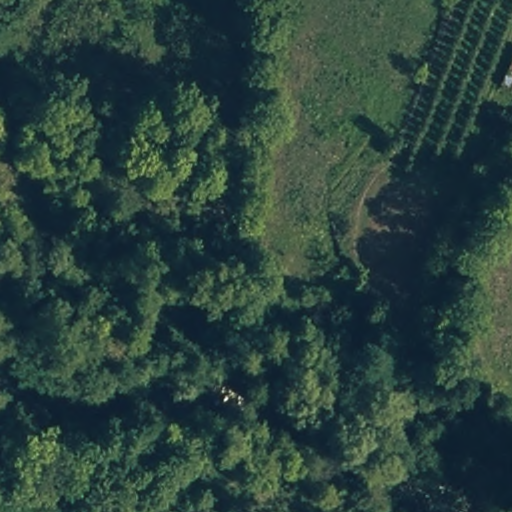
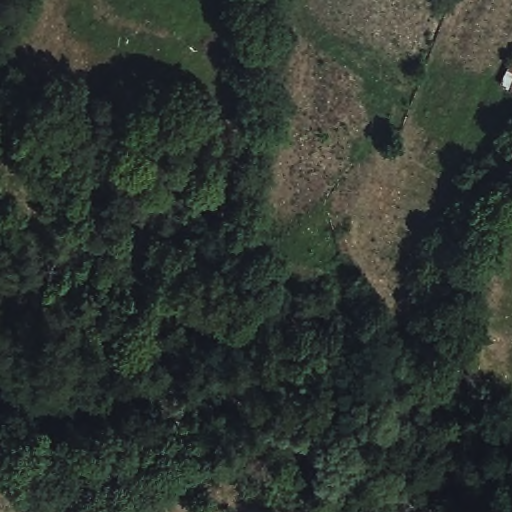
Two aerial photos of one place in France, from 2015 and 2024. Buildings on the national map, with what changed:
unchanged [(512,57),(512,91),(500,84),(512,57)]

